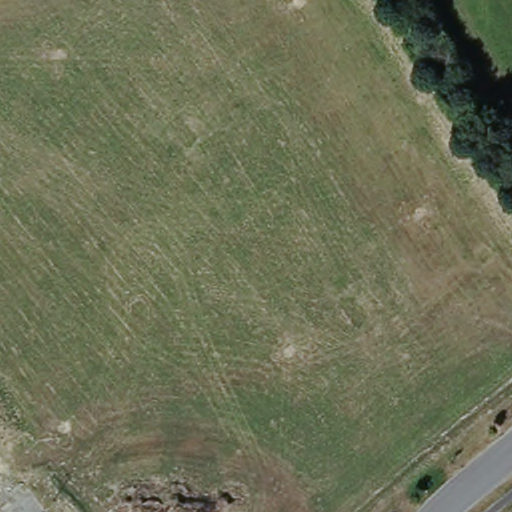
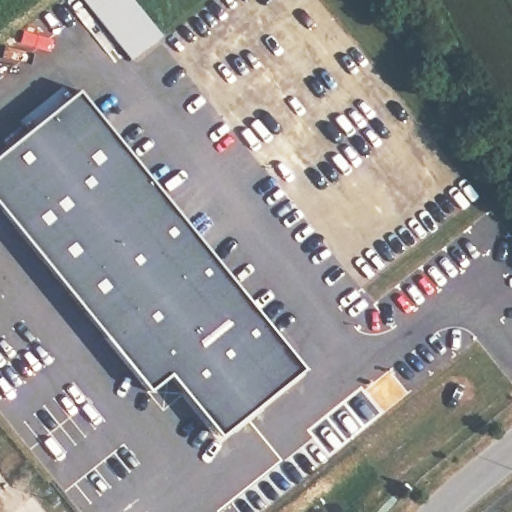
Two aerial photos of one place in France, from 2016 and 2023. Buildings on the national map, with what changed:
new [(133,0),(162,35),(131,60),(80,0),(133,0)]
new [(307,371),(223,440),(172,378),(149,397),(0,210),(0,158),(80,92),(307,371)]

